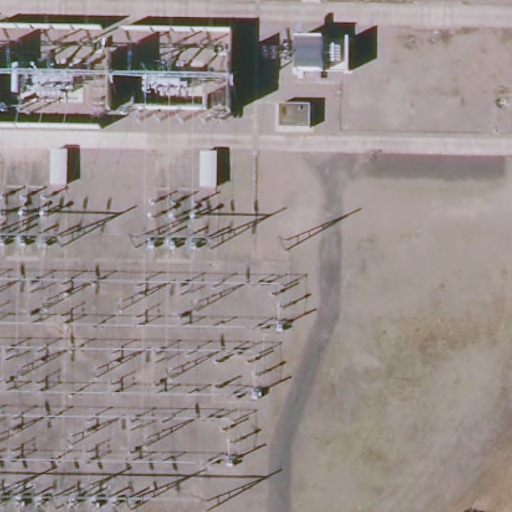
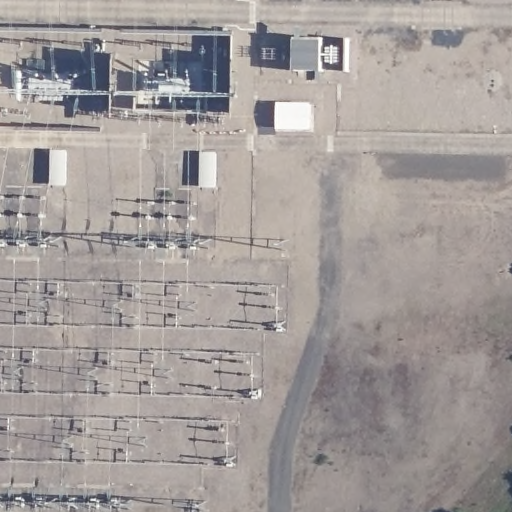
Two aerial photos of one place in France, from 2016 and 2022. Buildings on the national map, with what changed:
unchanged [(281,104),(312,105),(312,128),(280,128),(281,104)]

